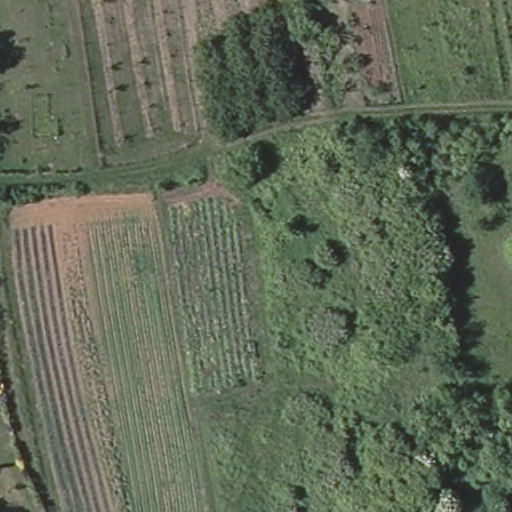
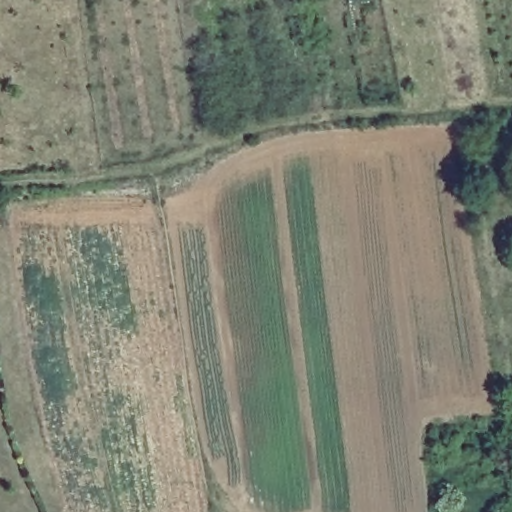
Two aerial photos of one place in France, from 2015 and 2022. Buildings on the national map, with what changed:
[]

